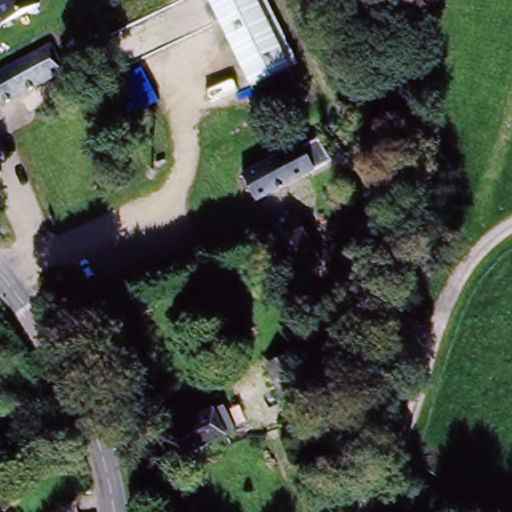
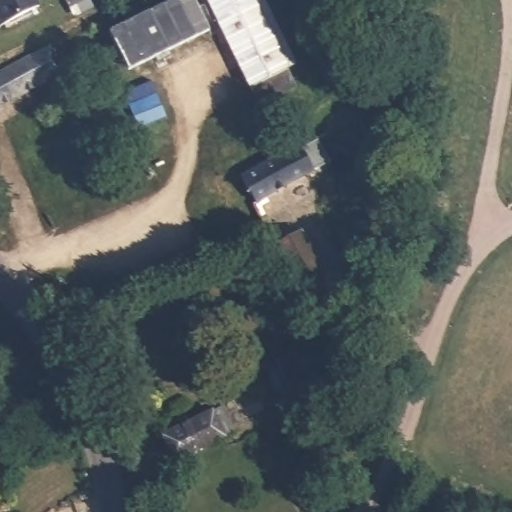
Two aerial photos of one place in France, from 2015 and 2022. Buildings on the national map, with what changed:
unchanged [(3,26),(0,20),(0,0),(38,0),(41,7),(3,26)]
new [(194,0),(210,32),(127,71),(110,33),(176,0),(194,0)]
unchanged [(286,65),(298,85),(261,107),(198,0),(258,0),(294,61),(286,65)]
unchanged [(60,72),(0,104),(0,70),(46,45),(60,72)]
unchanged [(332,155),(303,167),(310,181),(254,201),(244,173),(328,143),(332,155)]
unchanged [(302,229),(325,270),(300,283),(277,242),(302,229)]
unchanged [(55,285),(64,302),(54,307),(45,289),(55,285)]
unchanged [(289,354),(304,382),(283,393),(269,365),(289,354)]
unchanged [(177,462),(165,442),(210,415),(215,423),(226,417),(233,428),(177,462)]

